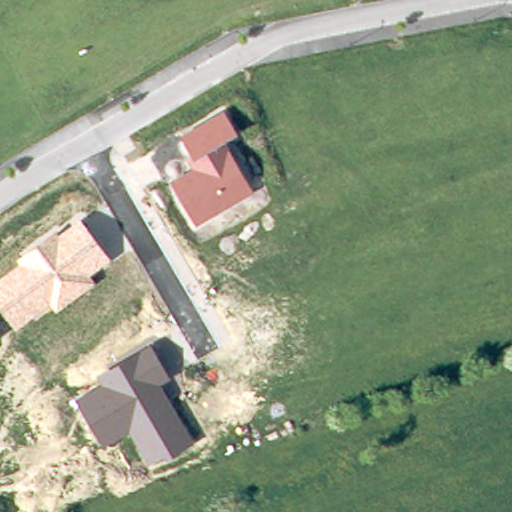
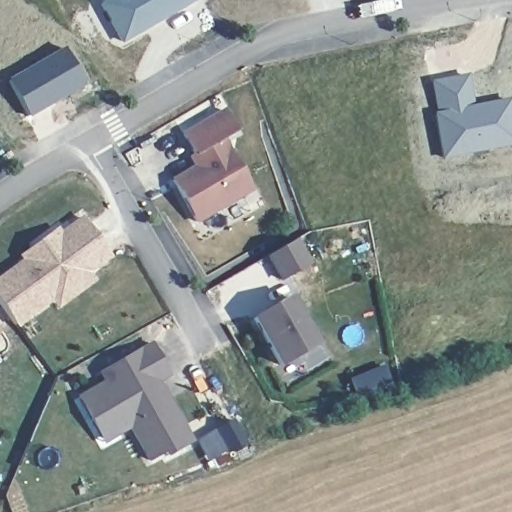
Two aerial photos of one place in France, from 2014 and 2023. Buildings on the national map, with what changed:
new [(196,0),(154,24),(153,21),(144,25),(146,29),(123,42),(102,4),(110,0),(196,0)]
new [(63,50),(83,84),(25,117),(6,83),(63,50)]
new [(473,108),(482,106),(483,110),(490,109),(489,104),(509,101),(512,119),(512,144),(444,158),(436,115),(439,115),(433,84),(467,76),(473,108)]
unchanged [(236,134),(227,141),(252,189),(196,223),(170,180),(192,167),(186,154),(189,151),(180,134),(224,109),(236,134)]
unchanged [(109,257),(90,272),(96,282),(54,310),(48,303),(13,328),(0,310),(0,275),(16,262),(15,259),(55,232),(58,235),(81,218),(109,257)]
new [(302,243),(316,267),(288,283),(274,259),(302,243)]
new [(317,344),(278,368),(248,319),(289,294),(317,344)]
unchanged [(169,377),(161,382),(194,439),(151,461),(128,429),(101,444),(75,398),(98,382),(93,373),(149,342),(169,377)]
new [(214,432),(226,452),(207,462),(196,443),(214,432)]

